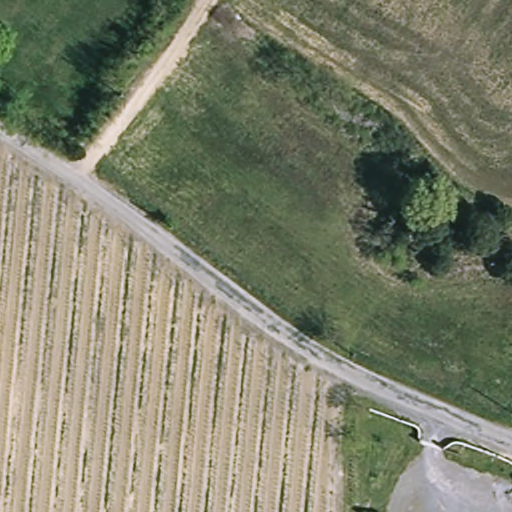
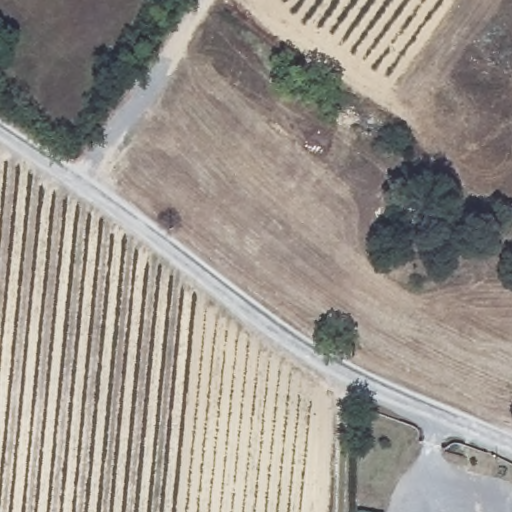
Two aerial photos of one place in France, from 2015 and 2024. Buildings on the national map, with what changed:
[]

